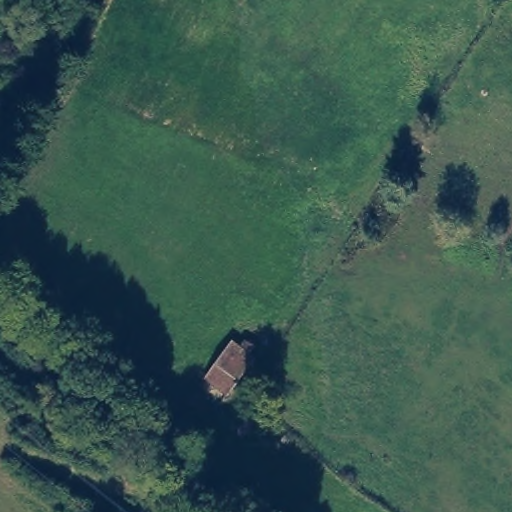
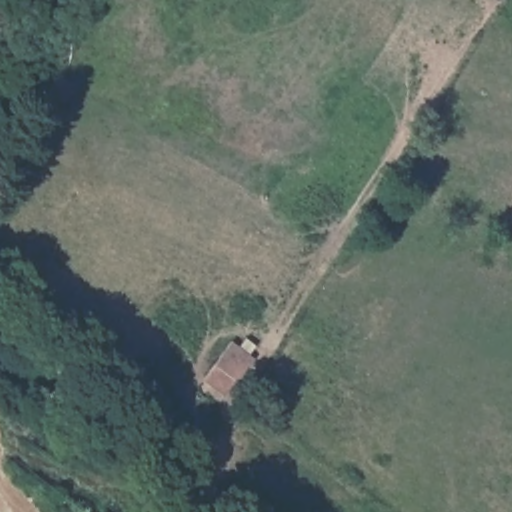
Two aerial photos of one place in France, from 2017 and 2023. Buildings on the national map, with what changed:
unchanged [(202,378),(232,336),(256,353),(228,393),(202,378)]

